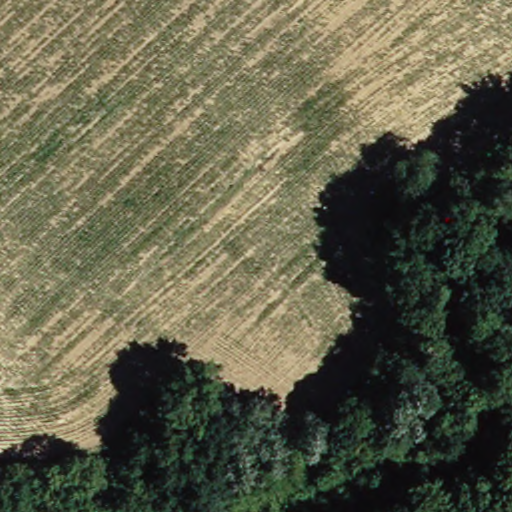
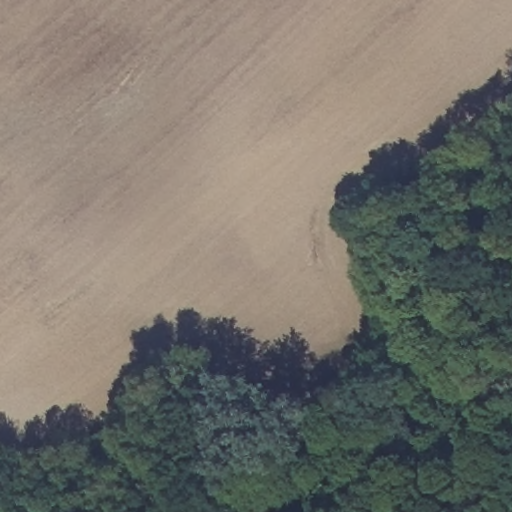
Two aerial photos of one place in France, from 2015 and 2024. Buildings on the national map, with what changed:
[]

